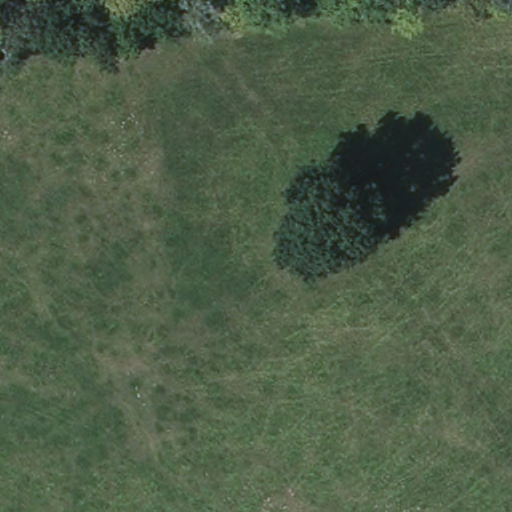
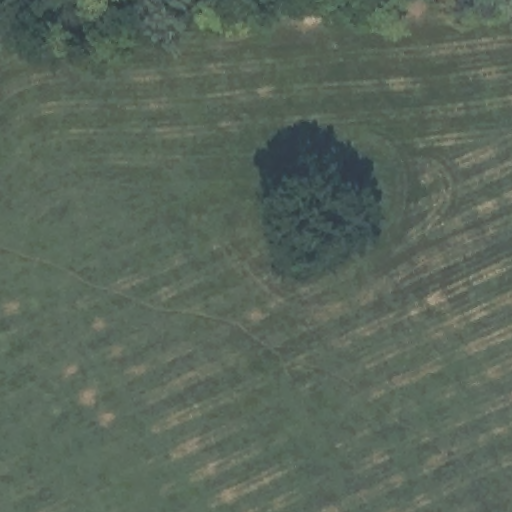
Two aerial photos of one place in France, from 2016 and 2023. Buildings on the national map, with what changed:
[]

